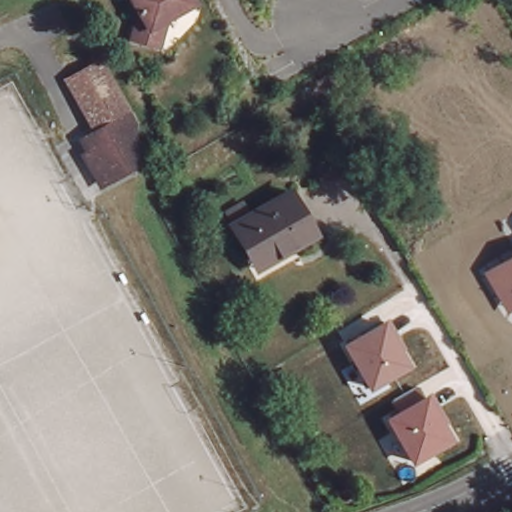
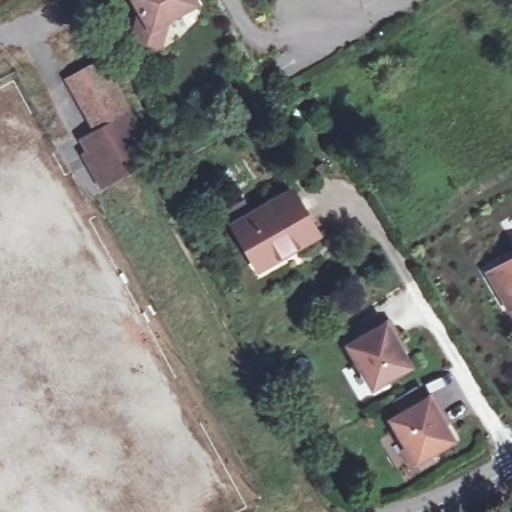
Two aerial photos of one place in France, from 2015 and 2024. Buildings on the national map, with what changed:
unchanged [(138,0),(186,0),(167,11),(160,39),(132,31),(140,4),(138,0)]
unchanged [(87,155),(93,152),(86,141),(103,131),(74,80),(95,69),(103,64),(109,74),(137,125),(136,133),(145,129),(151,139),(140,145),(136,138),(133,171),(110,183),(105,186),(87,155)]
unchanged [(252,263),(231,226),(291,192),(316,235),(293,249),(256,270),(252,263)]
unchanged [(508,313),(487,270),(512,255),(512,311),(508,313)]
unchanged [(369,390),(343,346),(386,320),(410,366),(369,390)]
unchanged [(412,466),(385,419),(397,411),(390,402),(415,387),(422,398),(429,394),(452,441),(412,466)]

